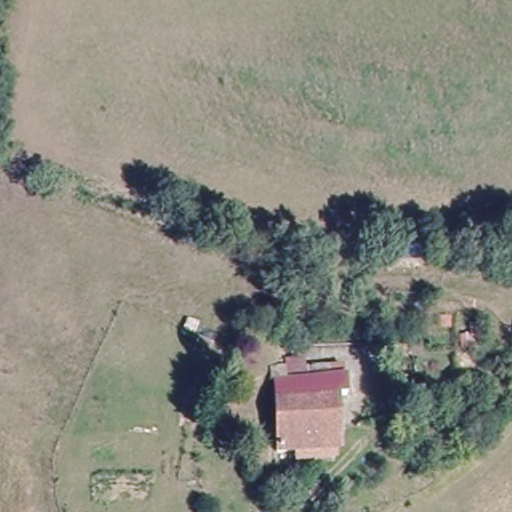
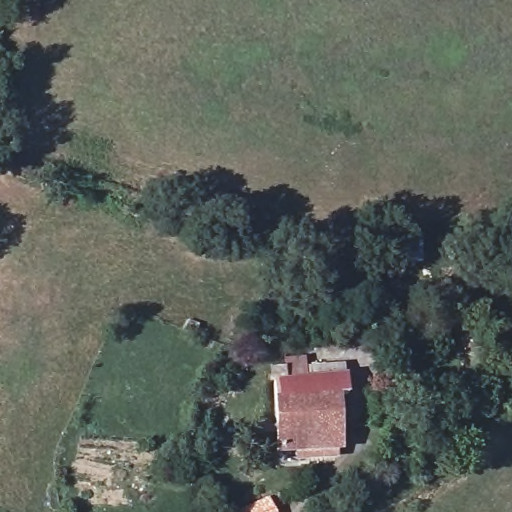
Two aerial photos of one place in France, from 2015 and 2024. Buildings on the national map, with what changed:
unchanged [(287,368),(307,366),(307,354),(320,355),(320,360),(342,360),(342,388),(332,387),(332,419),(331,440),(280,446),(279,417),(276,371),(270,372),(270,357),(286,357),(287,368)]

